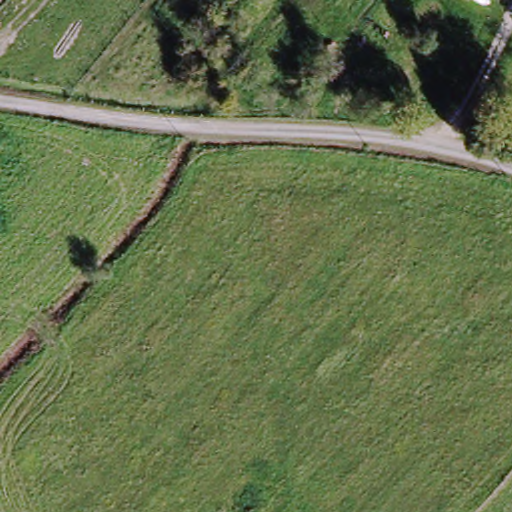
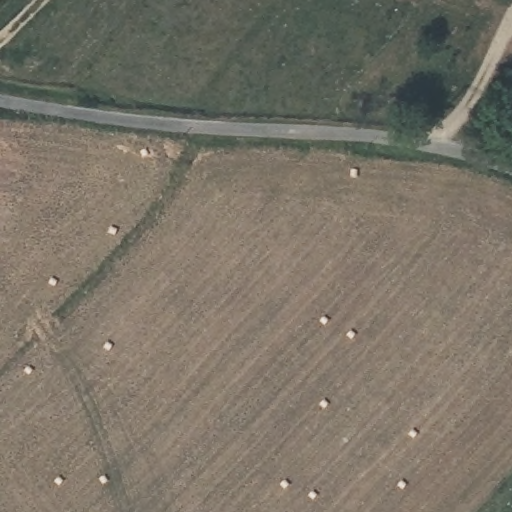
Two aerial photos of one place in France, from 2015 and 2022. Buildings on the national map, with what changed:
[]

